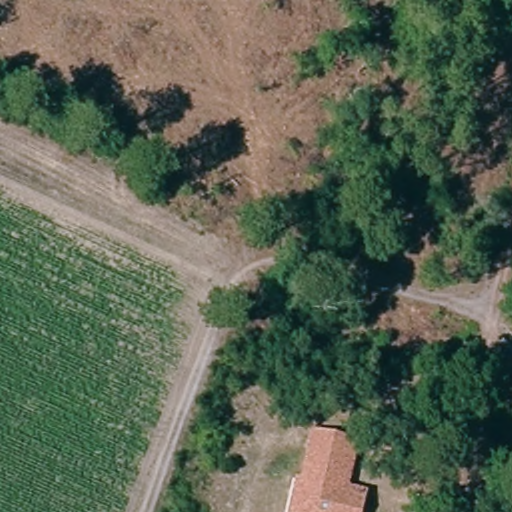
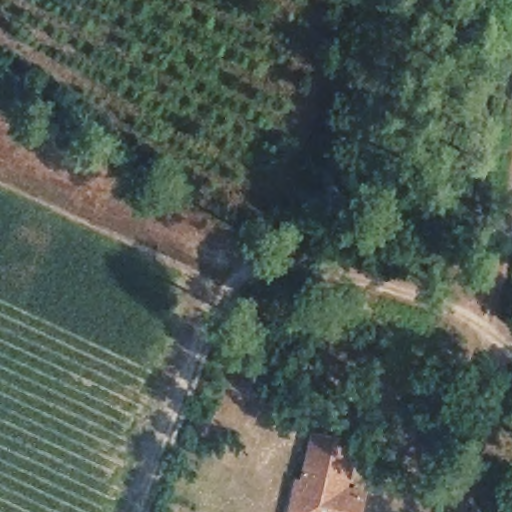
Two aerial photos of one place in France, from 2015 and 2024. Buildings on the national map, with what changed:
unchanged [(331,440),(347,443),(337,492),(356,496),(353,512),(291,512),(307,435),(331,440)]

